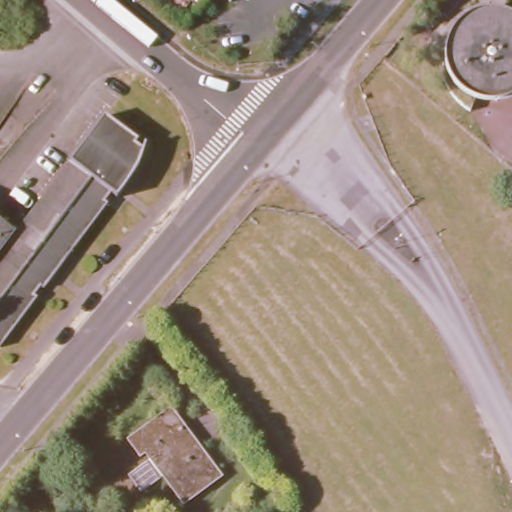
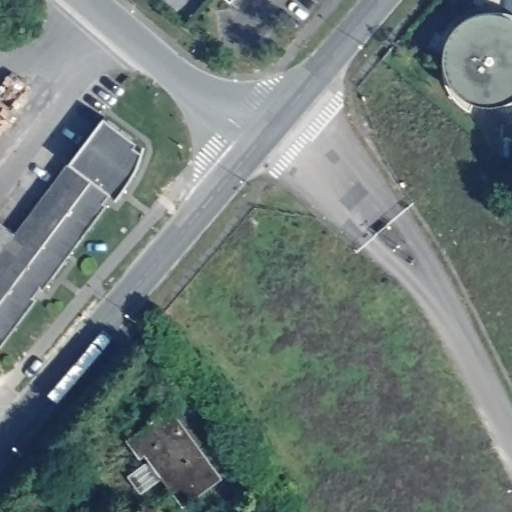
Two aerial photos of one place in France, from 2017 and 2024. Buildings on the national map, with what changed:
unchanged [(230,0),(244,0),(238,7),(230,0)]
unchanged [(451,90),(443,81),(438,71),(452,66),(448,50),(451,34),(459,20),(472,10),(488,5),(504,6),(512,10),(512,87),(507,90),(492,92),(476,89),(469,104),(459,97),(451,90)]
unchanged [(10,226),(63,157),(99,112),(133,137),(129,142),(138,147),(137,151),(136,155),(134,159),(132,162),(130,166),(128,170),(125,174),(123,178),(118,187),(111,195),(104,189),(98,197),(101,201),(37,286),(33,283),(27,292),(30,295),(0,335),(0,218),(10,226)]
unchanged [(182,501),(144,450),(138,453),(125,437),(172,403),(223,472),(182,501)]

